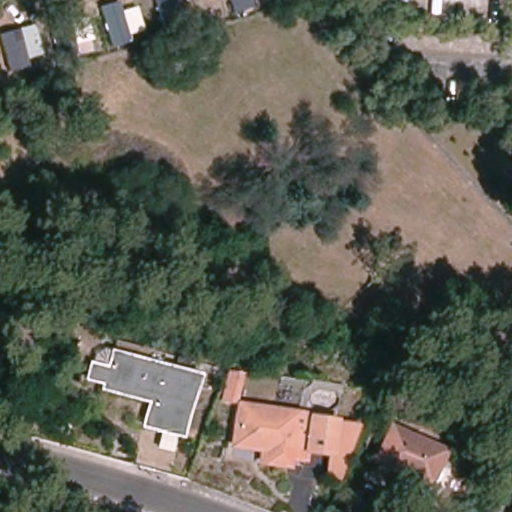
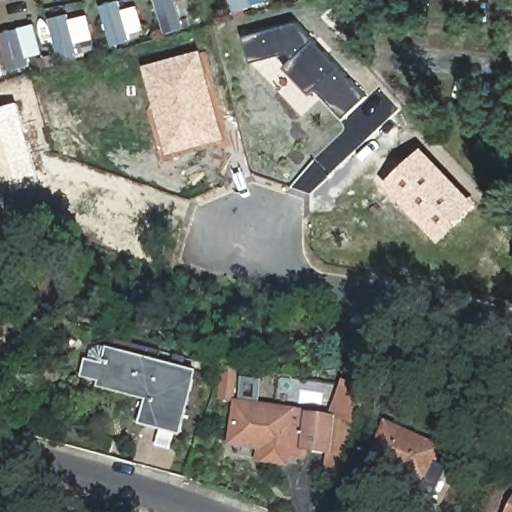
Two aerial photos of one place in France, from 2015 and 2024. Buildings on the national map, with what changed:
new [(247,36),(301,22),(317,40),(370,95),(346,118),(317,88),(312,94),(287,67),(295,59),(291,53),(254,62),(247,36)]
new [(225,139),(169,154),(145,66),(202,50),(225,139)]
new [(41,184),(0,195),(0,107),(21,101),(41,184)]
new [(477,206),(441,242),(385,184),(422,148),(477,206)]
unchanged [(102,388),(104,381),(85,376),(92,352),(104,346),(115,349),(199,372),(196,381),(170,474),(132,461),(151,402),(102,388)]
unchanged [(292,449),(290,471),(259,464),(260,450),(232,445),(236,404),(221,402),(225,385),(239,386),(237,400),(314,412),(309,451),(292,449)]
unchanged [(314,412),(359,422),(338,484),(321,479),(327,456),(309,451),(314,412)]
unchanged [(410,478),(374,462),(391,427),(416,438),(425,442),(446,451),(431,481),(428,486),(410,478)]

